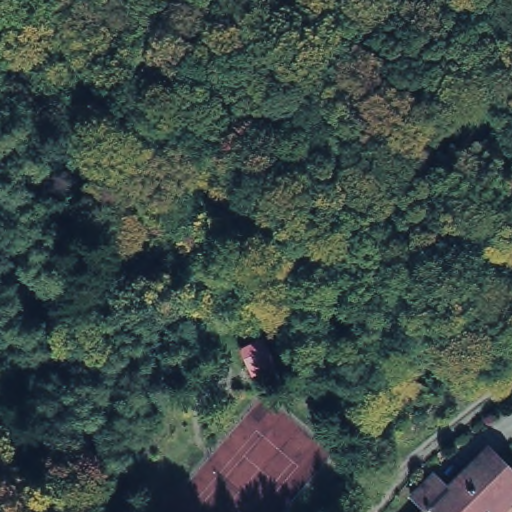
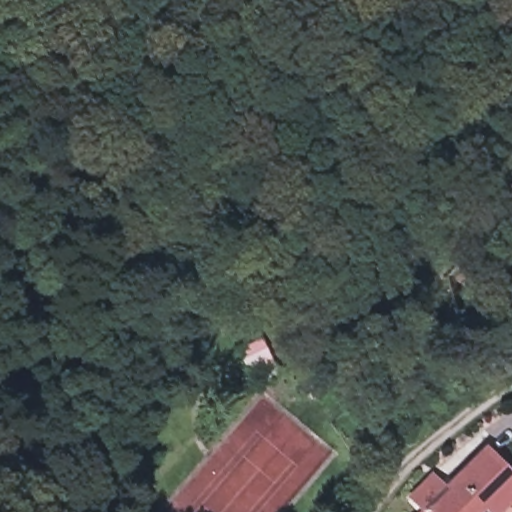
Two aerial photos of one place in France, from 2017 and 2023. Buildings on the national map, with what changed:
unchanged [(260,338),(272,362),(252,370),(240,347),(260,338)]
unchanged [(512,457),(512,503),(503,512),(487,512),(483,508),(479,512),(414,512),(493,435),(512,457)]

